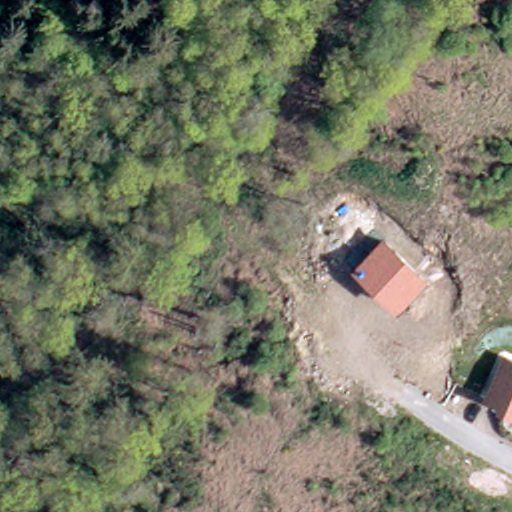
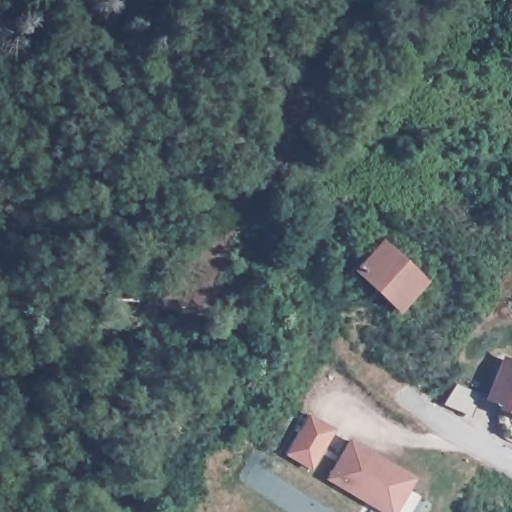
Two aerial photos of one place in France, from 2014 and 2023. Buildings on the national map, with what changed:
unchanged [(384,241),(429,282),(399,314),(354,272),(384,241)]
unchanged [(512,413),(489,401),(506,362),(512,365),(512,413)]
new [(312,470),(285,455),(310,413),(336,429),(312,470)]
new [(397,512),(382,512),(326,479),(351,437),(418,478),(397,512)]

